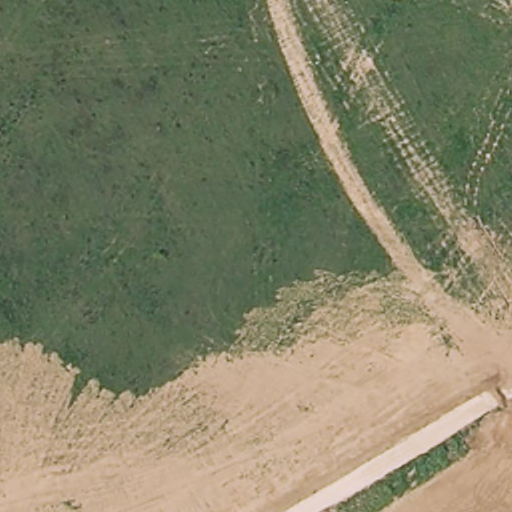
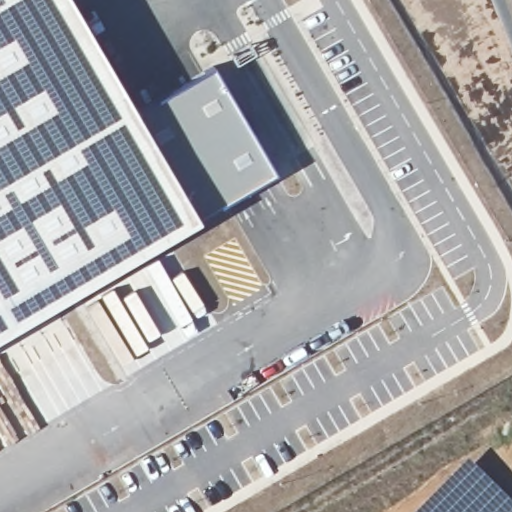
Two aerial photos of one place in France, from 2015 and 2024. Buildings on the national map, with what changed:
new [(197,219),(0,333),(0,0),(66,0),(132,112),(212,67),(274,172),(197,219)]

